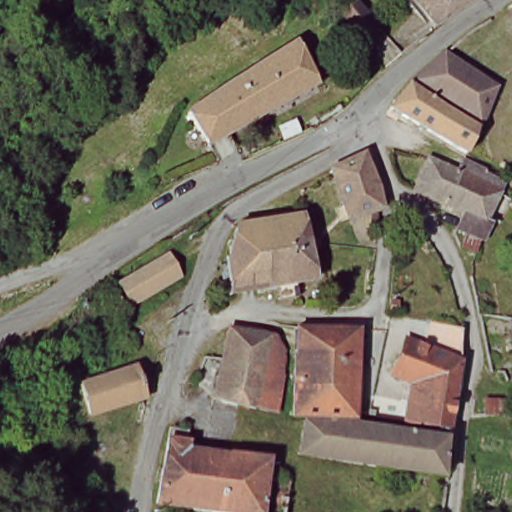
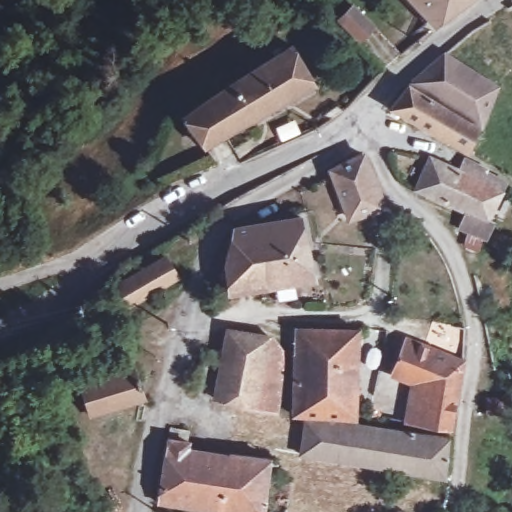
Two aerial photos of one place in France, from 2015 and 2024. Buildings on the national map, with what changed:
unchanged [(353,40),(331,17),(347,0),(371,23),(353,40)]
unchanged [(433,16),(416,0),(451,0),(433,16)]
unchanged [(289,44),(311,82),(206,144),(186,109),(289,44)]
unchanged [(447,49),(454,54),(495,85),(472,117),(423,82),(447,49)]
unchanged [(466,122),(461,150),(394,111),(418,88),(466,122)]
unchanged [(474,172),(473,175),(496,184),(493,188),(491,193),(481,216),(490,220),(483,237),(459,228),(464,209),(413,185),(424,157),(455,165),(474,172)]
unchanged [(365,160),(378,194),(379,210),(349,221),(332,177),(365,160)]
unchanged [(238,227),(303,219),(316,278),(234,290),(231,233),(238,227)]
unchanged [(166,260),(178,282),(131,310),(123,294),(120,288),(165,259),(166,260)]
unchanged [(293,325),(360,334),(354,416),(354,419),(285,409),(293,325)]
unchanged [(231,327),(267,332),(266,341),(279,345),(269,405),(213,396),(231,327)]
unchanged [(459,349),(449,425),(406,416),(409,380),(387,378),(388,338),(459,349)]
unchanged [(126,360),(141,393),(83,421),(69,389),(126,360)]
unchanged [(447,435),(443,475),(299,449),(301,420),(387,428),(447,435)]
unchanged [(168,435),(181,437),(179,458),(218,462),(220,452),(264,457),(264,468),(262,512),(254,512),(160,499),(164,454),(168,435)]

